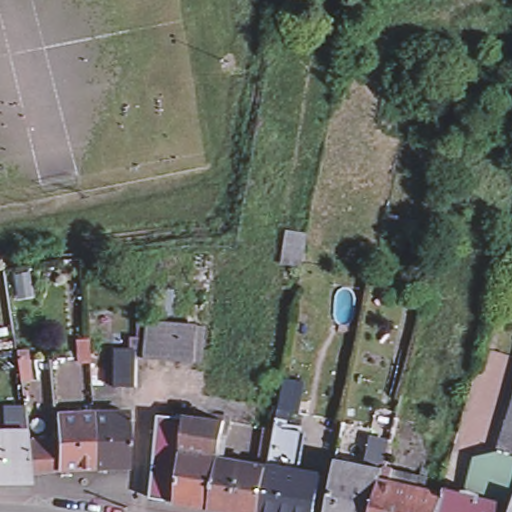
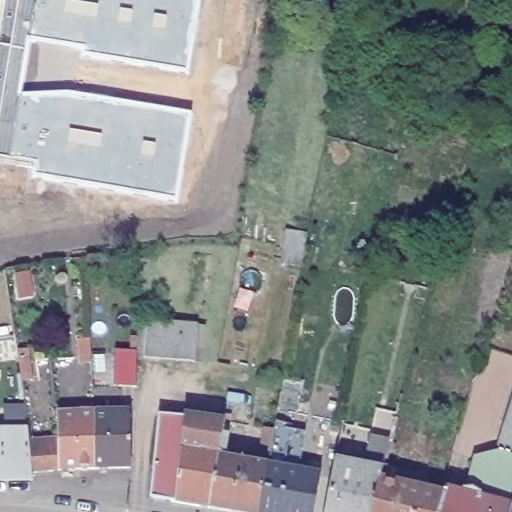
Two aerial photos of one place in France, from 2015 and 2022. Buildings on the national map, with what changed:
new [(189,72),(83,54),(83,49),(29,39),(17,94),(75,94),(191,115),(175,202),(34,175),(37,162),(0,156),(0,0),(198,0),(189,72)]
unchanged [(136,352),(136,322),(138,322),(138,326),(145,327),(145,321),(191,322),(196,322),(195,328),(194,362),(191,362),(143,359),(137,358),(136,358),(137,384),(137,387),(130,387),(114,386),(114,352),(136,352)]
unchanged [(97,362),(86,363),(84,340),(96,339),(97,362)]
unchanged [(33,377),(23,379),(21,360),(31,358),(33,377)]
unchanged [(29,430),(26,400),(43,399),(54,397),(55,412),(57,431),(29,434),(30,441),(57,438),(60,470),(33,472),(33,480),(0,480),(0,430),(29,430)]
unchanged [(499,452),(508,422),(512,410),(512,458),(498,455),(499,452)]
unchanged [(60,470),(60,412),(72,413),(96,413),(97,468),(60,470)]
unchanged [(97,468),(96,413),(131,413),(131,468),(97,468)]
unchanged [(152,498),(154,465),(159,416),(185,418),(176,502),(152,498)]
unchanged [(176,502),(185,418),(226,422),(220,457),(220,458),(218,458),(209,507),(176,502)]
unchanged [(301,432),(294,471),(269,467),(276,427),(301,432)]
unchanged [(466,492),(475,457),(499,452),(498,455),(512,458),(512,512),(460,512),(465,496),(466,492)]
unchanged [(209,507),(218,458),(220,458),(269,467),(261,512),(237,512),(212,508),(209,507)]
unchanged [(383,474),(382,478),(384,479),(427,491),(444,495),(445,492),(465,496),(460,512),(327,512),(337,464),(383,474)]
unchanged [(323,476),(315,512),(261,512),(269,467),(294,471),(323,476)]

